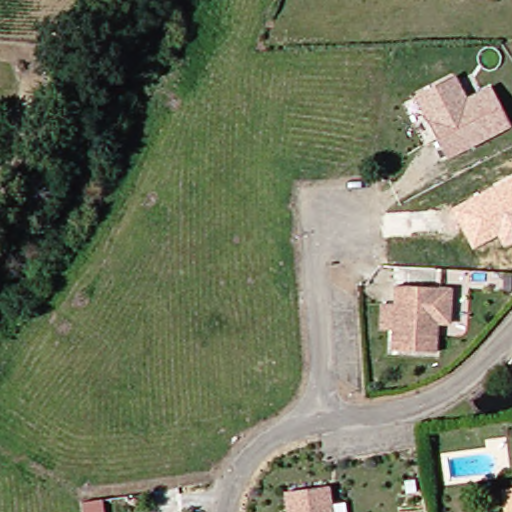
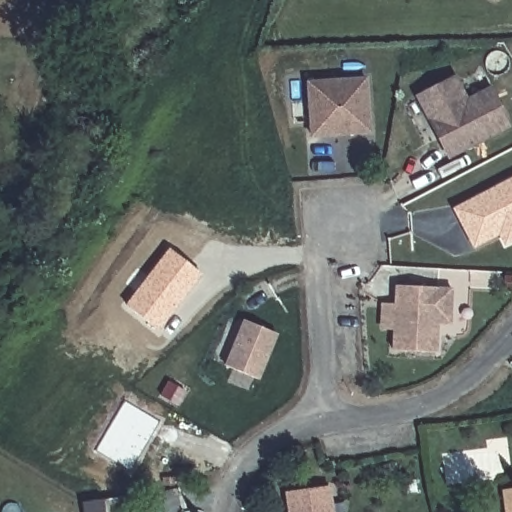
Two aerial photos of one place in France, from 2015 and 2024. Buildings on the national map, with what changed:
new [(367,78),(371,131),(313,134),(309,82),(367,78)]
unchanged [(418,98),(455,78),(468,102),(491,89),(511,127),(450,159),(439,138),(435,132),(418,98)]
unchanged [(512,177),(512,242),(503,247),(499,236),(474,249),(453,209),(512,177)]
new [(157,331),(125,306),(170,248),(202,273),(157,331)]
unchanged [(393,350),(394,328),(382,327),(383,303),(395,304),(397,284),(440,287),(452,288),(451,323),(438,322),(436,353),(393,350)]
new [(246,320),(279,333),(260,379),(228,366),(246,320)]
unchanged [(512,495),(508,467),(512,466),(512,495)]
unchanged [(512,512),(496,512),(490,470),(508,467),(512,495),(512,512)]
unchanged [(289,512),(287,491),(329,486),(332,512),(289,512)]
unchanged [(86,512),(84,501),(104,498),(106,512),(86,512)]

